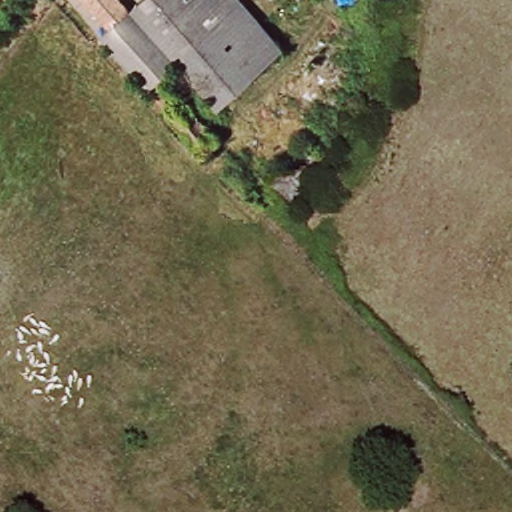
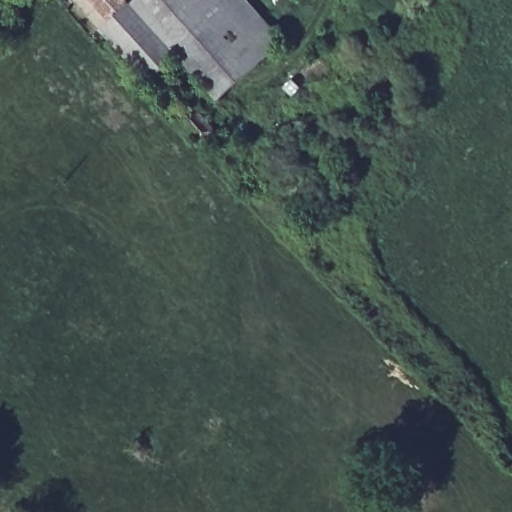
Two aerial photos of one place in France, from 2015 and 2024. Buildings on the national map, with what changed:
unchanged [(120,20),(96,0),(130,0),(137,5),(120,20)]
unchanged [(193,52),(137,5),(143,0),(210,0),(248,42),(271,19),(281,29),(293,43),(229,99),(217,84),(189,54),(193,52)]
unchanged [(210,0),(254,0),(271,19),(248,42),(210,0)]
unchanged [(137,5),(193,52),(189,54),(176,67),(167,73),(151,87),(104,37),(120,20),(137,5)]
unchanged [(176,67),(171,72),(198,101),(226,131),(209,147),(151,87),(167,73),(176,67)]

